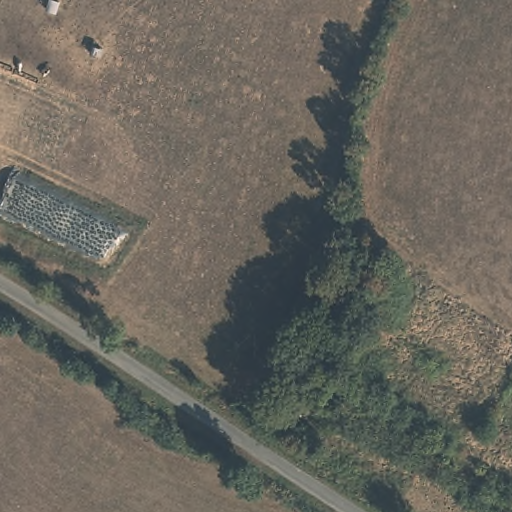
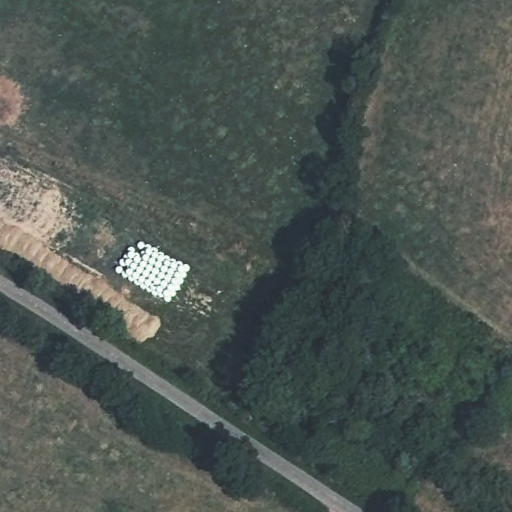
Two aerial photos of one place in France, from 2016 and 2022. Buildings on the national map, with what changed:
[]

